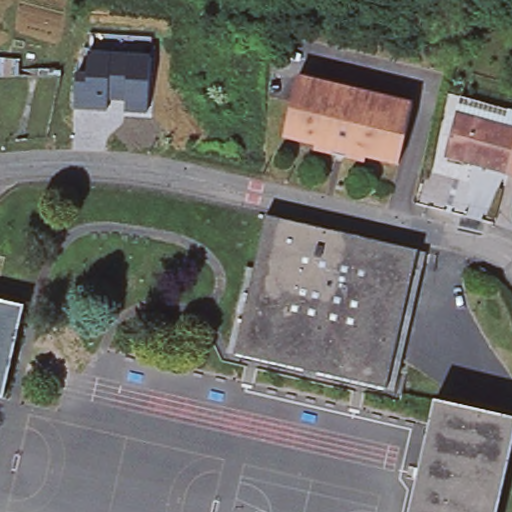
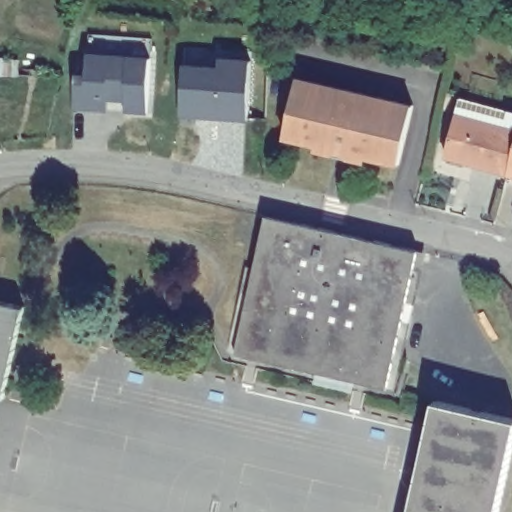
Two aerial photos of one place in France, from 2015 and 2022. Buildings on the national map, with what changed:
unchanged [(146,115),(124,113),(125,102),(107,100),(105,111),(73,108),(77,72),(90,73),(92,50),(152,55),(146,115)]
new [(185,64),(221,66),(222,56),(252,59),(248,121),(182,116),(185,64)]
unchanged [(0,72),(0,58),(1,58),(0,72)]
unchanged [(302,79),(417,102),(405,162),(372,155),(370,160),(320,150),(322,145),(290,139),(302,79)]
unchanged [(453,117),(455,108),(487,116),(485,125),(512,132),(512,150),(505,174),(442,157),(453,117)]
unchanged [(512,150),(512,176),(505,174),(512,150)]
unchanged [(385,391),(230,357),(260,215),(416,250),(385,391)]
unchanged [(495,279),(490,287),(475,280),(480,271),(495,279)]
unchanged [(20,300),(2,394),(0,394),(0,296),(20,300)]
unchanged [(512,446),(498,512),(410,512),(432,401),(512,417),(512,446)]

